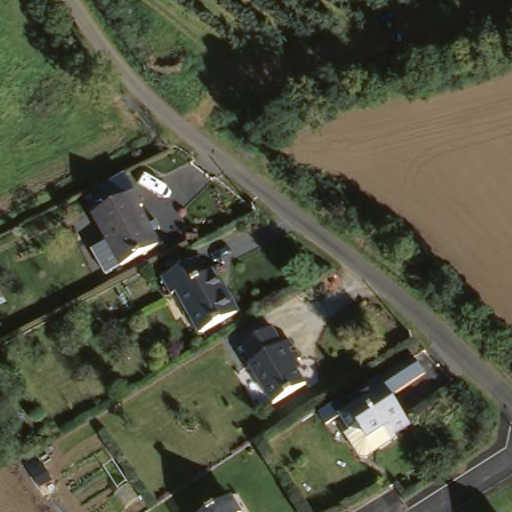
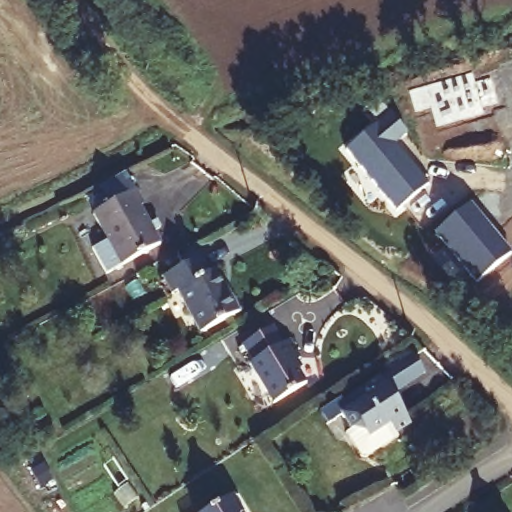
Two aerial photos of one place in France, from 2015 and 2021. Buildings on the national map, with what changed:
new [(377,97),(388,110),(377,119),(367,106),(377,97)]
new [(389,111),(407,132),(393,144),(401,154),(403,151),(430,181),(398,210),(346,149),(389,111)]
unchanged [(148,195),(141,198),(162,239),(111,265),(99,240),(114,231),(99,202),(100,201),(94,191),(109,184),(106,177),(126,167),(134,183),(141,180),(148,195)]
new [(467,201),(509,251),(474,280),(433,230),(467,201)]
unchanged [(204,248),(214,266),(219,263),(234,288),(239,285),(250,303),(211,328),(186,290),(183,292),(169,269),(204,248)]
unchanged [(256,357),(259,355),(249,338),(279,320),(289,337),(296,333),(306,351),(299,356),(312,377),(280,397),(256,357)]
unchanged [(401,423),(404,428),(374,450),(369,448),(353,426),(358,423),(348,408),(376,388),(369,379),(384,368),(416,345),(429,361),(396,385),(416,413),(401,423)]
unchanged [(253,511),(252,512),(204,512),(241,492),(253,511)]

